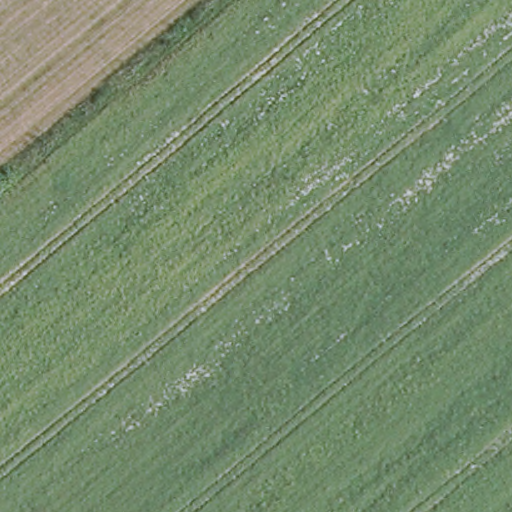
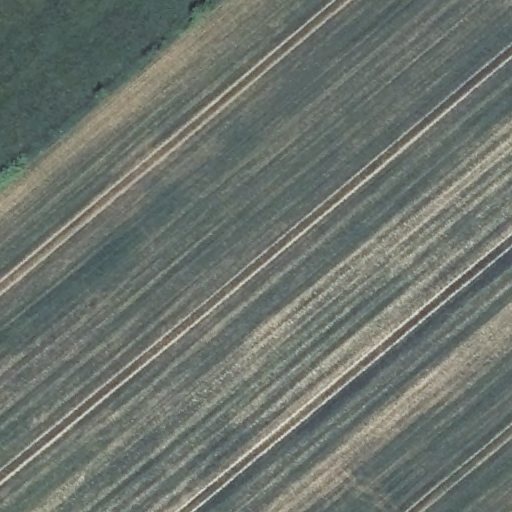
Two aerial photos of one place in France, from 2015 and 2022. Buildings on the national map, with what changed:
[]

